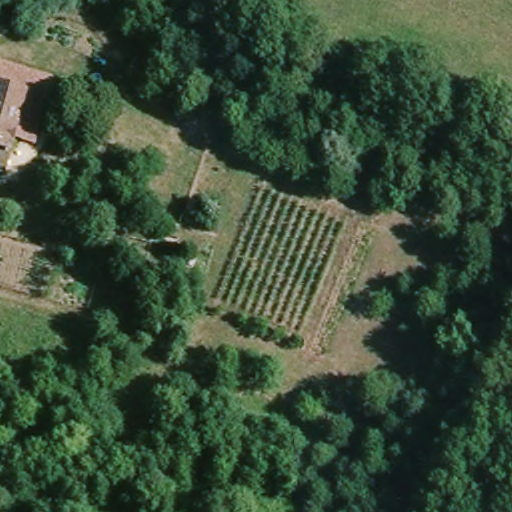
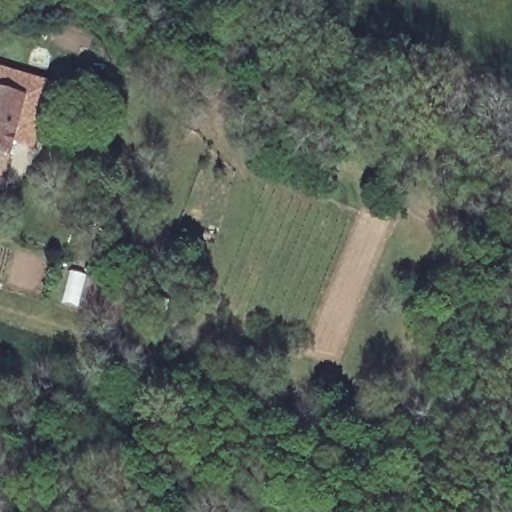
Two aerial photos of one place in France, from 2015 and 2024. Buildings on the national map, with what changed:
unchanged [(50,84),(34,147),(14,141),(26,101),(0,92),(0,71),(50,84)]
unchanged [(0,181),(0,98),(23,104),(2,181),(0,181)]

